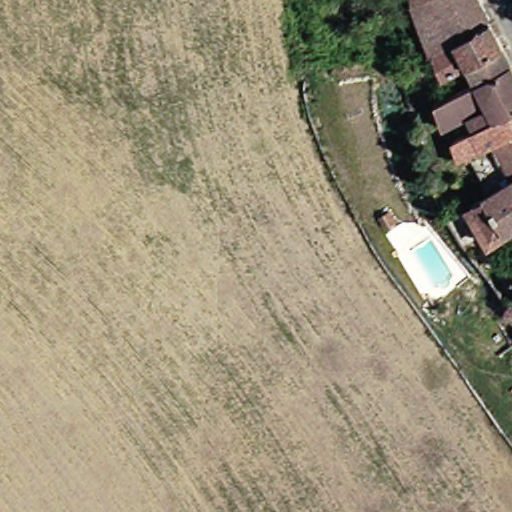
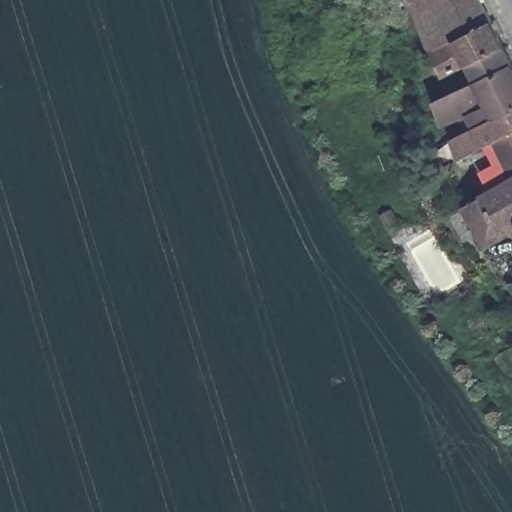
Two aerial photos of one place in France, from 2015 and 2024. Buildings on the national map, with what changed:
unchanged [(438,52),(421,0),(486,0),(496,20),(438,52)]
unchanged [(473,112),(448,124),(441,100),(481,80),(473,64),(448,75),(438,52),(496,20),(509,46),(512,52),(512,112),(480,127),(473,112)]
unchanged [(497,142),(466,159),(459,137),(480,127),(512,112),(512,135),(497,142)]
unchanged [(497,142),(512,135),(512,171),(497,142)]
unchanged [(472,226),(463,210),(479,200),(512,181),(512,229),(495,240),(484,247),(472,226)]

